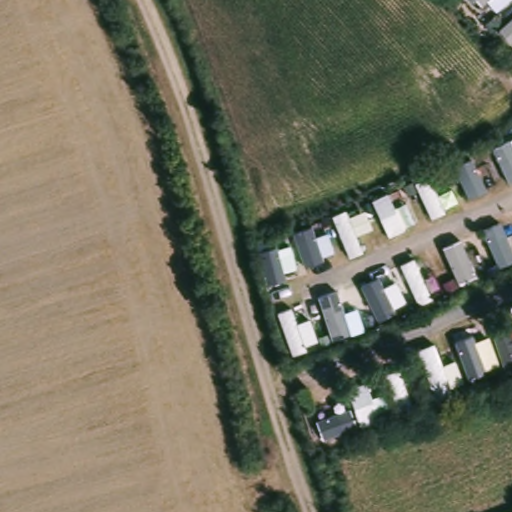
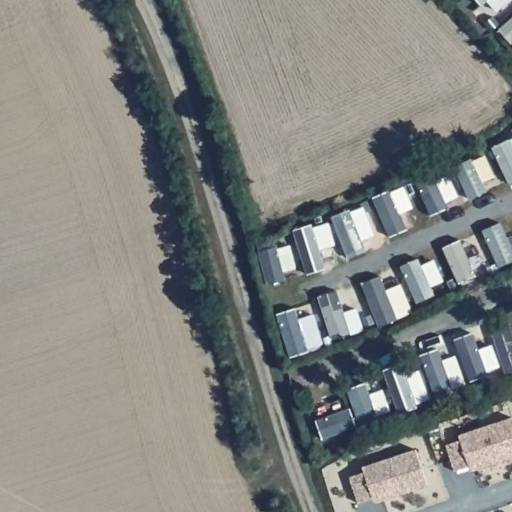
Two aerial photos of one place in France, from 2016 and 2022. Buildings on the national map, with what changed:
new [(471,466),(454,470),(446,445),(460,440),(459,435),(511,418),(512,422),(512,458),(472,471),(471,466)]
new [(373,498),(358,502),(351,476),(364,472),(362,467),(416,450),(426,487),(376,504),(373,498)]

